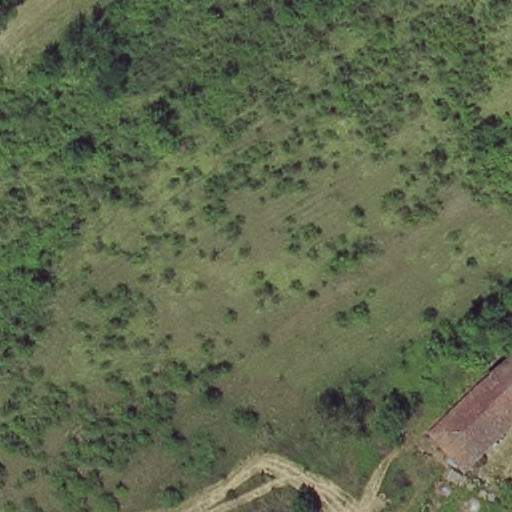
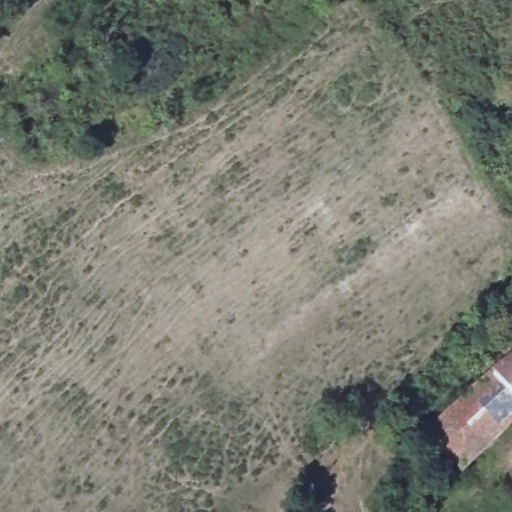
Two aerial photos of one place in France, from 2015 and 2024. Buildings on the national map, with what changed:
unchanged [(434,439),(479,380),(512,354),(512,420),(469,468),(434,439)]

